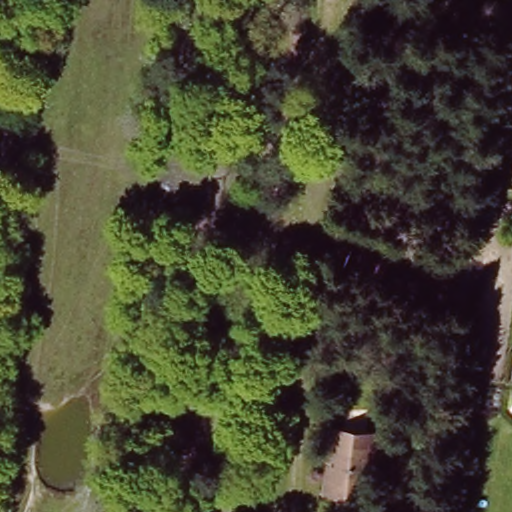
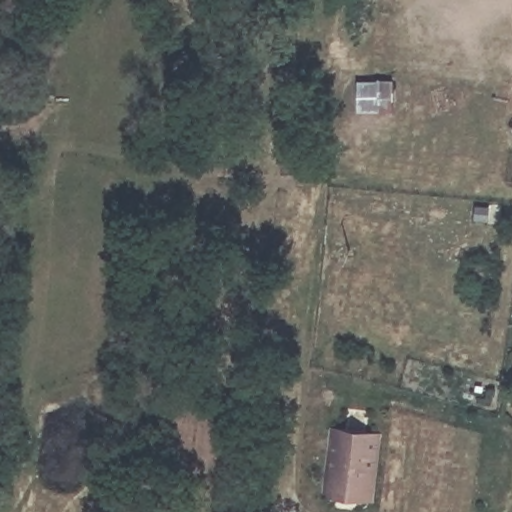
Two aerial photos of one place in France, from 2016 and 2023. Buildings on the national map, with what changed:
unchanged [(374,426),(364,504),(312,500),(321,422),(374,426)]

